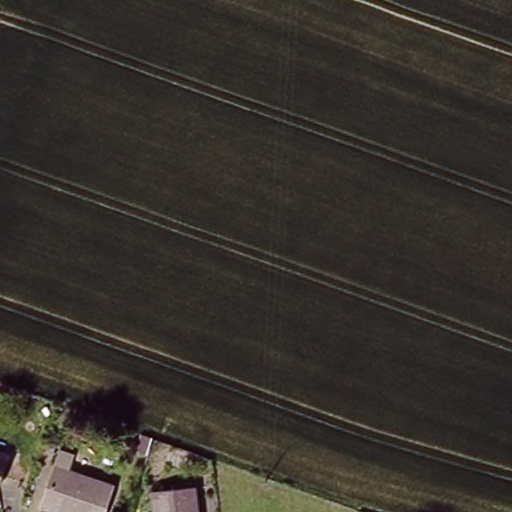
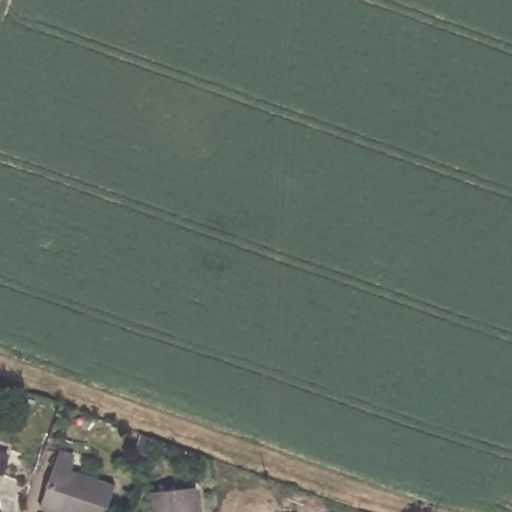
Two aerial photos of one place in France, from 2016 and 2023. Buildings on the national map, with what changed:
unchanged [(140,443),(132,441),(136,427),(145,430),(140,443)]
unchanged [(77,453),(72,468),(116,484),(106,512),(66,512),(43,504),(62,447),(77,453)]
unchanged [(0,474),(0,457),(5,459),(0,474)]
unchanged [(197,485),(199,512),(158,512),(156,489),(197,485)]

